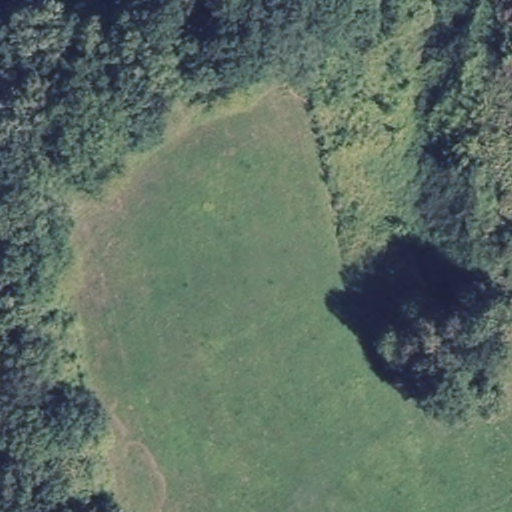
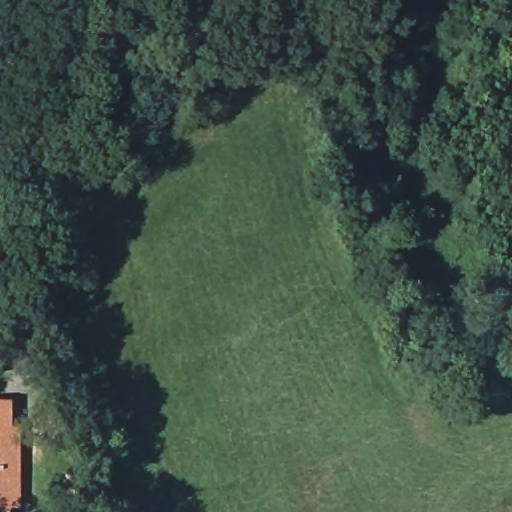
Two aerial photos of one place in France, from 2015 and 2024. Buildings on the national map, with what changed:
new [(12,426),(17,426),(21,512),(0,512),(0,400),(11,400),(12,426)]

